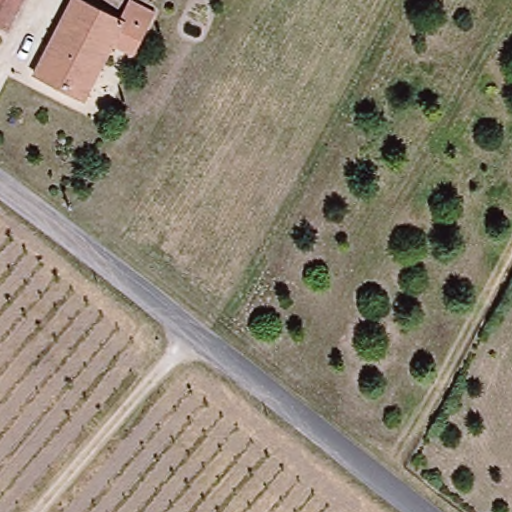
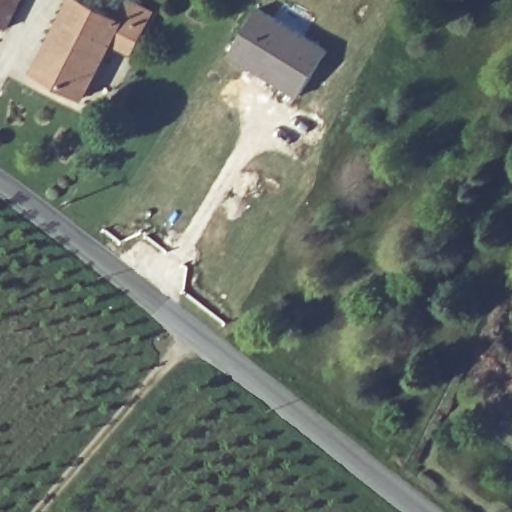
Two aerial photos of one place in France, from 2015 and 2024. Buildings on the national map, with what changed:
unchanged [(0,24),(0,0),(18,0),(6,27),(0,24)]
unchanged [(126,54),(106,43),(78,99),(29,71),(68,0),(81,0),(116,18),(125,0),(128,0),(149,11),(126,54)]
new [(259,7),(328,48),(297,99),(253,72),(229,55),(259,7)]

